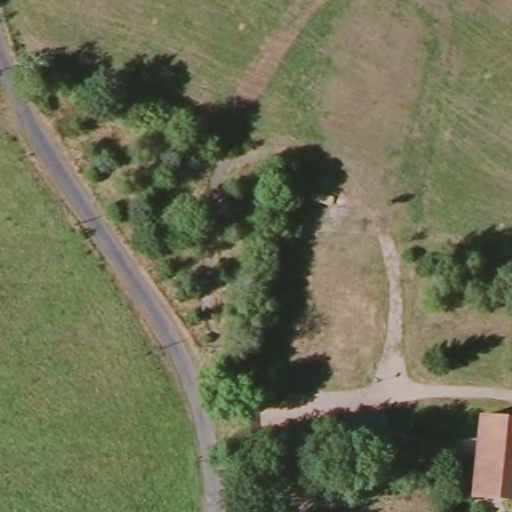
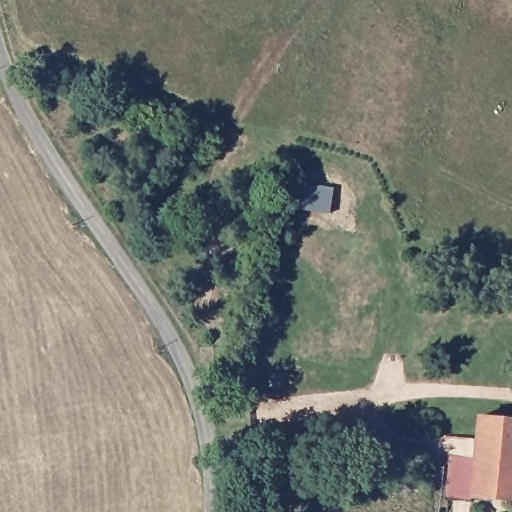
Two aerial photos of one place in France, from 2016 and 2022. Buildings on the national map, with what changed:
unchanged [(512,419),(512,498),(472,495),(479,416),(512,419)]

